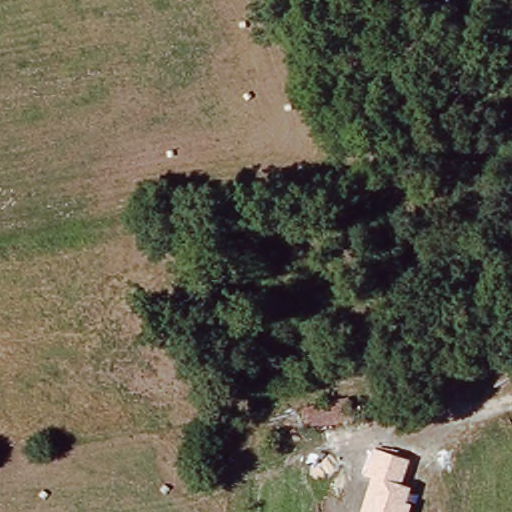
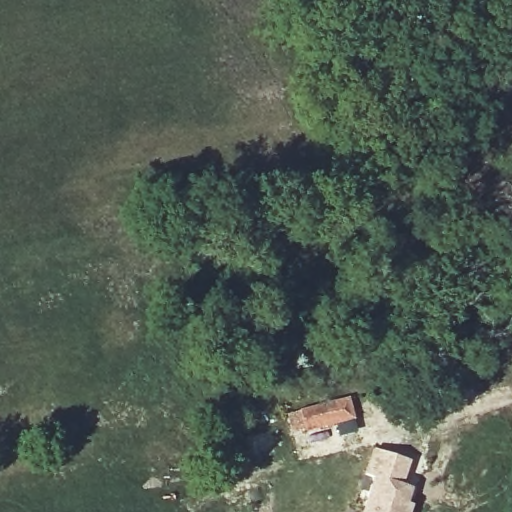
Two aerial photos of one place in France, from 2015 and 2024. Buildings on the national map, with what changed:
new [(291,435),(286,414),(347,396),(353,419),(291,435)]
unchanged [(373,478),(365,475),(374,448),(411,461),(404,482),(412,485),(406,503),(412,504),(411,504),(409,512),(362,512),(373,478)]

